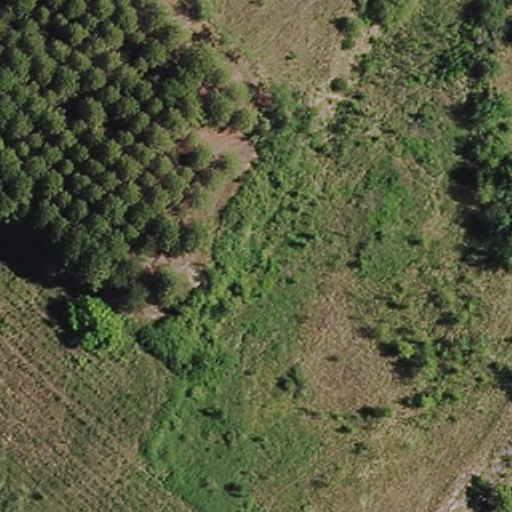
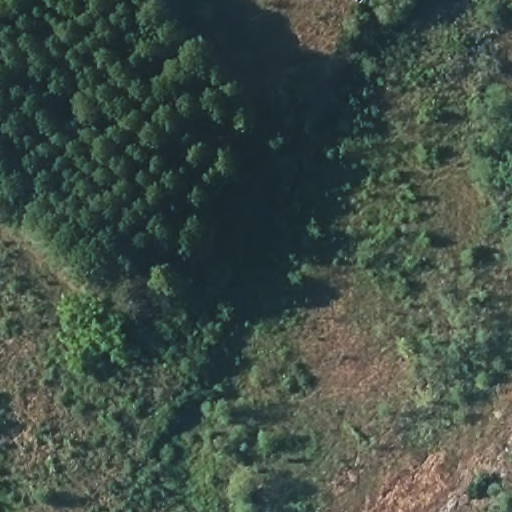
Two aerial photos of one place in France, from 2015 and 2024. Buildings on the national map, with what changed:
[]

